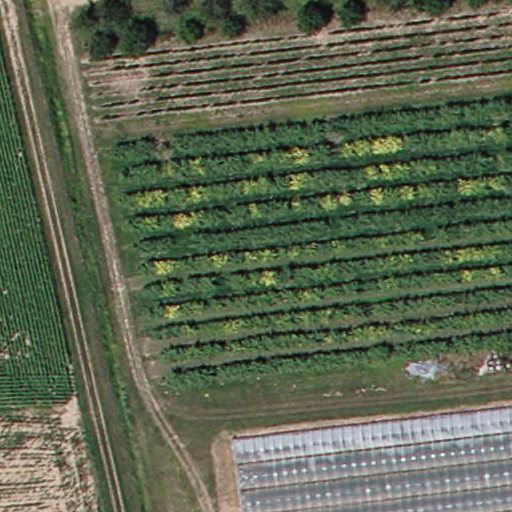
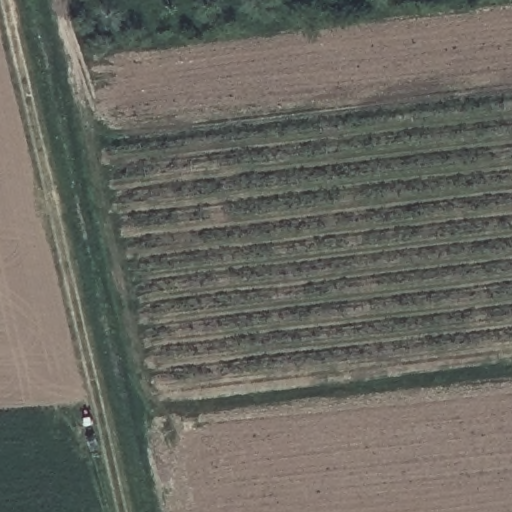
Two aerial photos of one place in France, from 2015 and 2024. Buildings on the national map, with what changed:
demolished [(512,403),(512,512),(234,512),(225,436),(512,403)]
unchanged [(512,404),(512,411),(511,404),(512,404)]

